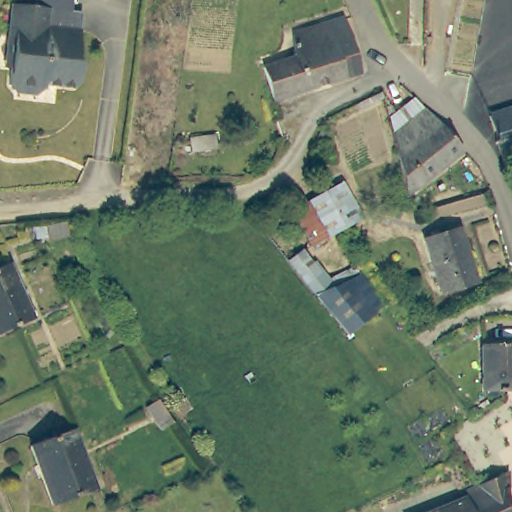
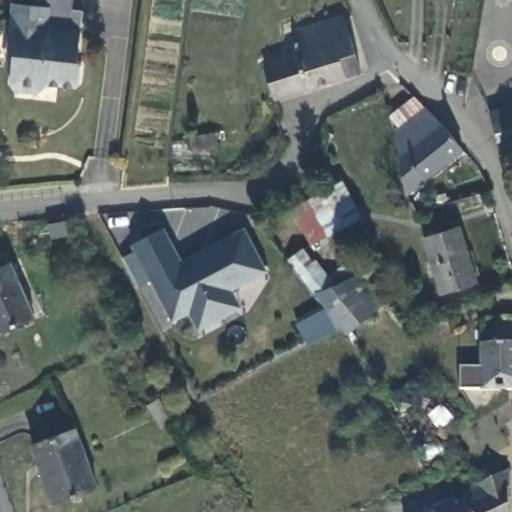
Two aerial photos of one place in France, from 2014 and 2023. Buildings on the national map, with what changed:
unchanged [(33,4),(34,0),(71,0),(70,9),(81,10),(76,59),(80,63),(78,82),(71,86),(41,83),(40,89),(36,92),(14,89),(7,82),(14,33),(7,32),(11,1),(33,4)]
unchanged [(363,73),(276,103),(263,65),(291,56),(290,49),(296,47),(295,35),(335,23),(343,21),(363,73)]
unchanged [(407,194),(393,136),(392,131),(388,118),(415,95),(426,107),(465,148),(407,194)]
unchanged [(487,115),(512,107),(512,133),(495,139),(487,115)]
unchanged [(502,163),(495,139),(512,133),(512,160),(502,163)]
unchanged [(293,205),(320,192),(345,181),(360,216),(340,226),(310,240),(293,205)]
unchanged [(61,225),(63,233),(44,236),(41,222),(60,219),(61,225)]
unchanged [(458,222),(473,275),(438,285),(423,233),(458,222)]
new [(180,261),(244,228),(267,271),(231,290),(241,307),(198,331),(189,315),(171,323),(150,281),(137,288),(121,258),(134,252),(130,246),(163,228),(180,261)]
unchanged [(342,335),(287,262),(303,247),(330,278),(350,265),(383,306),(342,335)]
unchanged [(32,315),(0,329),(0,262),(8,259),(32,315)]
new [(337,329),(306,344),(295,324),(322,309),(337,329)]
unchanged [(486,388),(485,342),(512,342),(512,387),(510,388),(486,388)]
unchanged [(155,396),(169,419),(155,428),(141,405),(155,396)]
unchanged [(74,429),(95,488),(52,504),(30,445),(74,429)]
unchanged [(504,512),(418,512),(457,496),(455,489),(472,483),(504,469),(504,512)]

